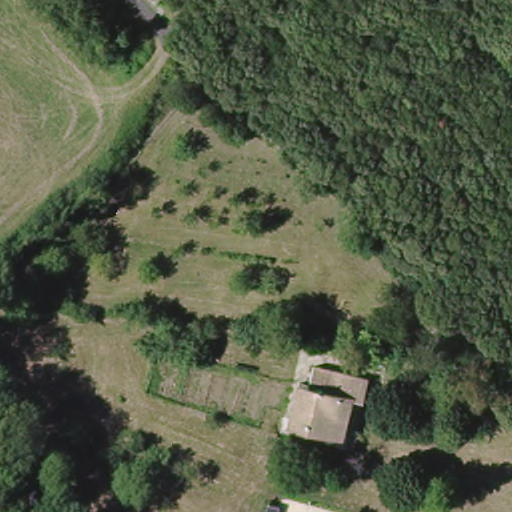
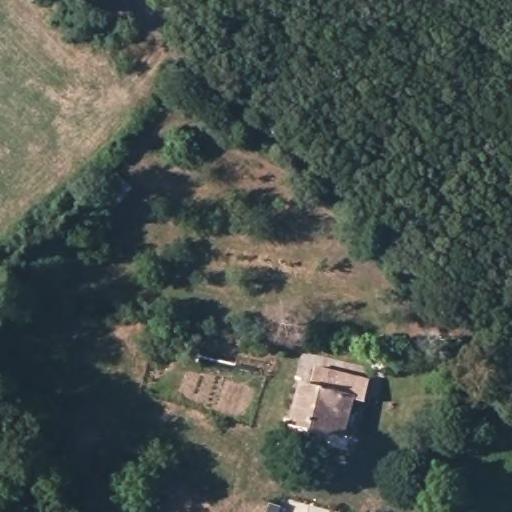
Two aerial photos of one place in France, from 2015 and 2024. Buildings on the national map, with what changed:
unchanged [(374,377),(371,399),(354,397),(351,438),(299,431),(304,391),(331,394),(334,372),(374,377)]

